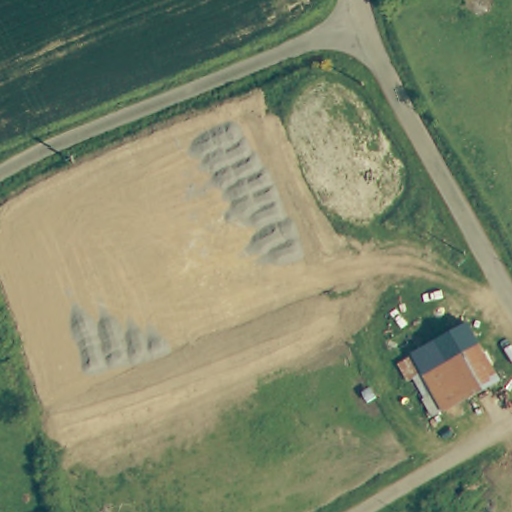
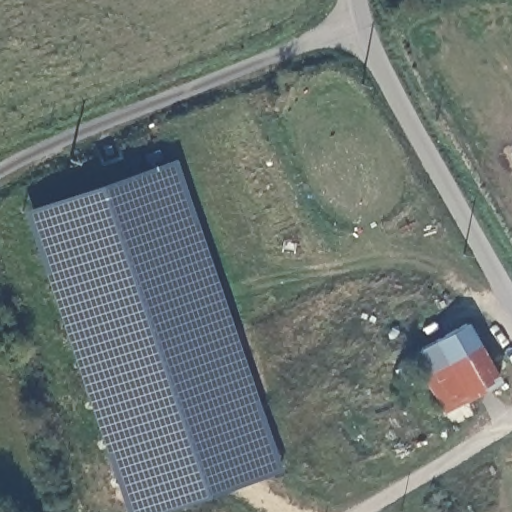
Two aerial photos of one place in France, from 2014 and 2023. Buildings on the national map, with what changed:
new [(176,161),(280,472),(162,512),(125,512),(24,211),(176,161)]
unchanged [(469,328),(499,386),(466,402),(438,344),(469,328)]
unchanged [(443,413),(414,355),(438,344),(466,402),(443,413)]

